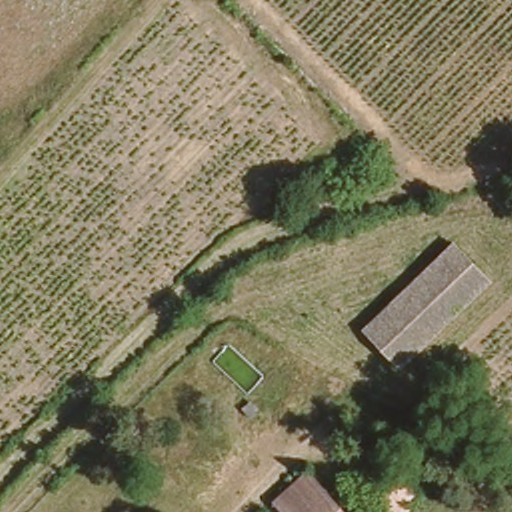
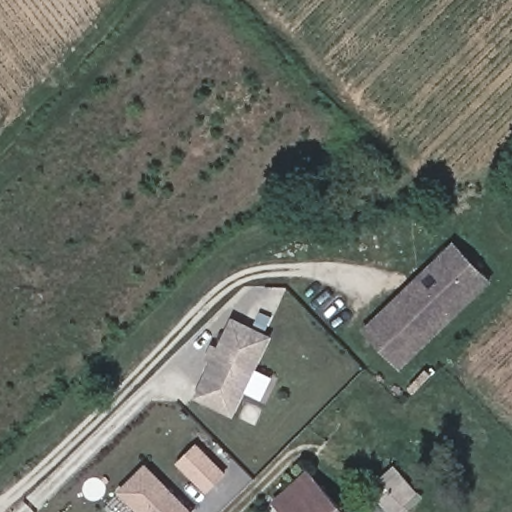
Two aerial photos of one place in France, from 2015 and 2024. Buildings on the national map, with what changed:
unchanged [(381,314),(451,243),(486,276),(417,348),(381,314)]
unchanged [(417,348),(399,366),(363,332),(381,314),(417,348)]
new [(205,359),(211,343),(219,346),(232,317),(272,336),(235,417),(194,398),(211,361),(205,359)]
new [(206,493),(177,462),(197,444),(227,473),(206,493)]
unchanged [(412,483),(402,495),(374,470),(384,459),(412,483)]
new [(138,512),(118,491),(146,462),(195,511),(194,512),(138,512)]
unchanged [(289,490),(303,474),(347,512),(277,512),(272,508),(289,490)]

